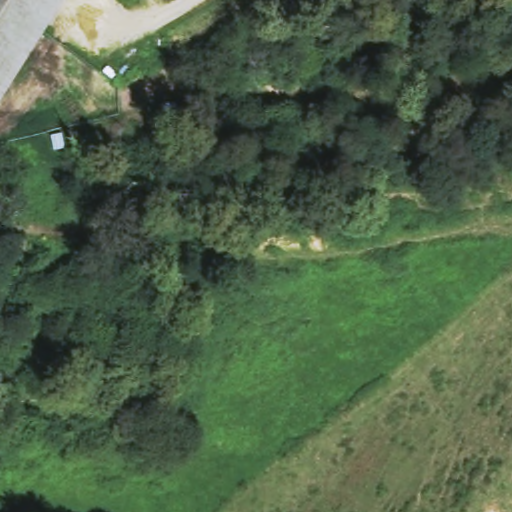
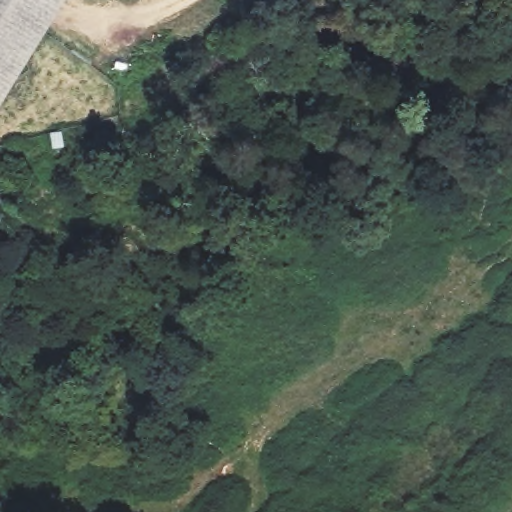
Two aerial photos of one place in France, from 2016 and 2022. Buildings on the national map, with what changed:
unchanged [(67,0),(0,108),(0,0),(67,0)]

